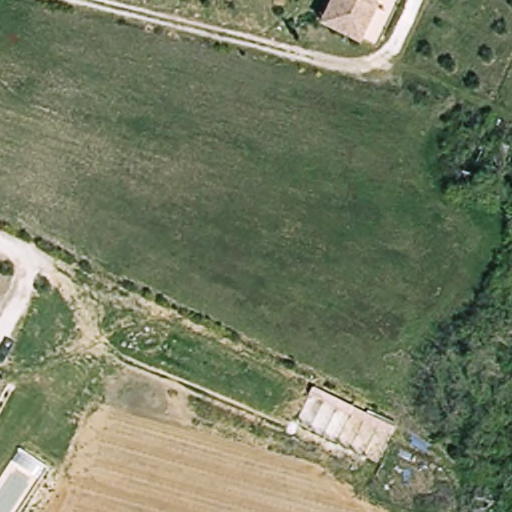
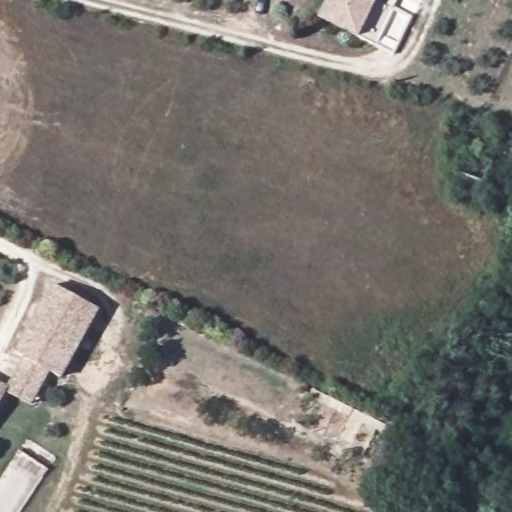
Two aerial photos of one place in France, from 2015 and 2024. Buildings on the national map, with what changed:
unchanged [(333,0),(381,0),(362,36),(340,24),(325,16),(332,1),(333,0)]
new [(11,390),(6,388),(22,358),(13,352),(50,284),(100,310),(62,379),(48,372),(30,405),(9,395),(11,390)]
unchanged [(0,413),(0,385),(11,390),(0,413)]

